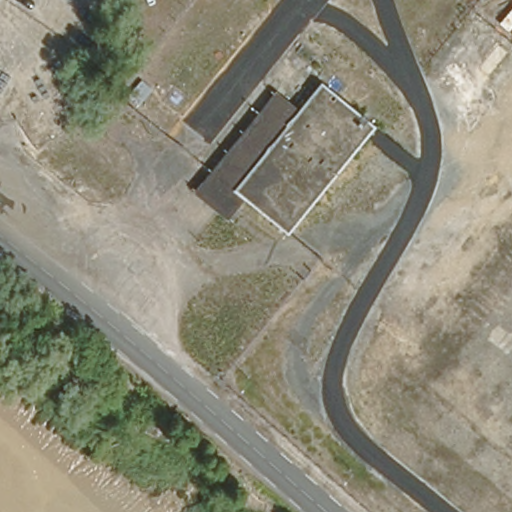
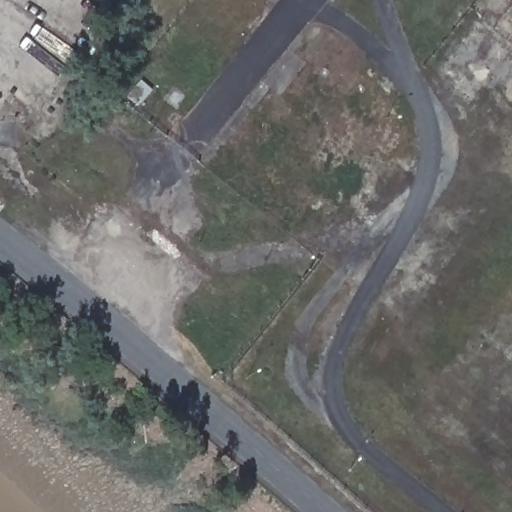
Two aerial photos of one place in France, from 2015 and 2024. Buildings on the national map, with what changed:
demolished [(241,201),(226,220),(191,190),(205,173),(272,90),(297,111),(320,83),(372,127),(282,234),(241,201)]

